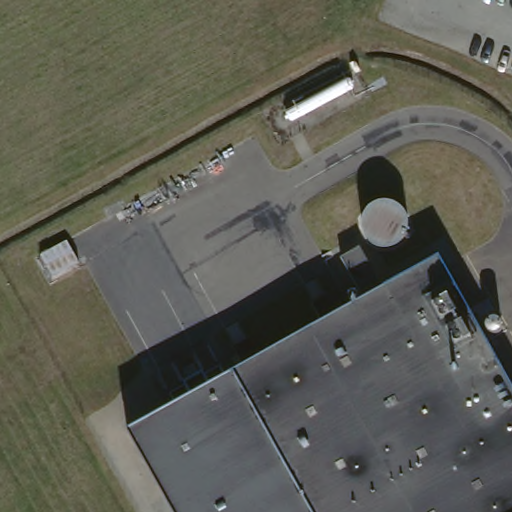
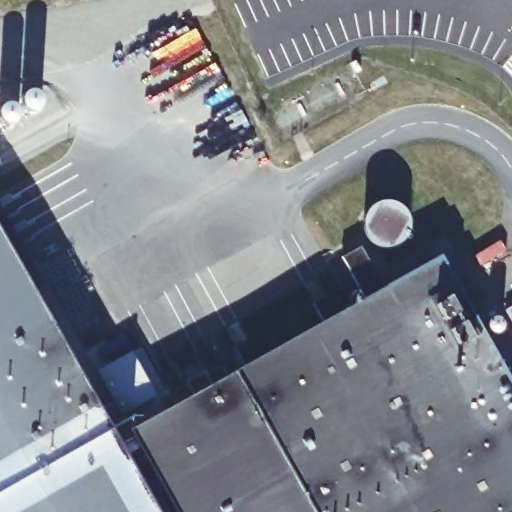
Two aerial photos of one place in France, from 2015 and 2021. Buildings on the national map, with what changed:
unchanged [(363,229),(365,225),(367,220),(371,217),(375,214),(380,212),(385,212),(390,212),(394,214),(398,215),(402,219),(405,222),(407,227),(408,231),(408,236),(407,241),(406,245),(403,250),(400,253),(396,255),(391,257),(386,258),(382,258),(377,256),(373,255),(369,251),(366,247),(364,243),(363,239),(362,234),(363,229)]
new [(155,512),(0,512),(0,236),(155,512)]
unchanged [(253,348),(260,360),(321,325),(314,313),(321,309),(331,304),(337,316),(361,302),(342,267),(361,256),(381,291),(441,256),(485,333),(490,343),(512,384),(512,512),(174,512),(129,432),(235,374),(242,370),(235,357),(253,348)]
unchanged [(500,334),(500,336),(500,337),(500,340),(499,341),(497,342),(496,343),(495,343),(493,344),(491,343),(490,343),(488,342),(486,341),(485,340),(485,338),(484,336),(484,335),(485,333),(485,331),(486,330),(487,329),(488,328),(490,327),(492,327),(494,327),(495,327),(497,328),(498,330),(500,331),(500,332),(500,334)]

